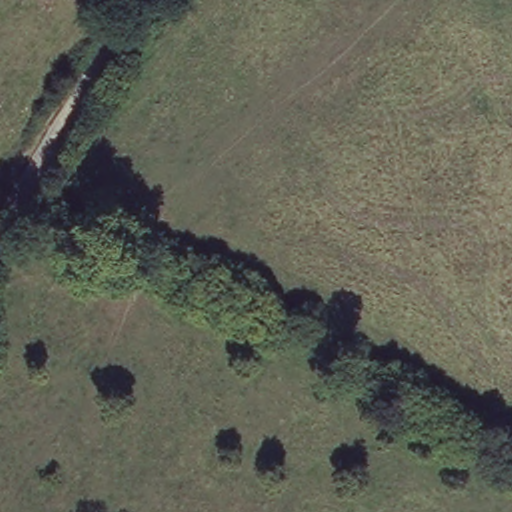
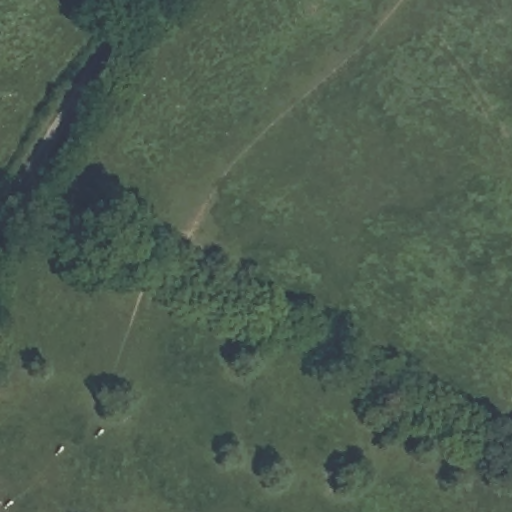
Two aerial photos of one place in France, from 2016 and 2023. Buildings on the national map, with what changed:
[]

